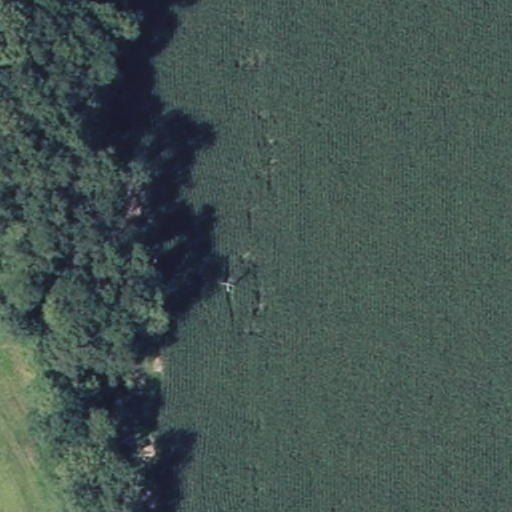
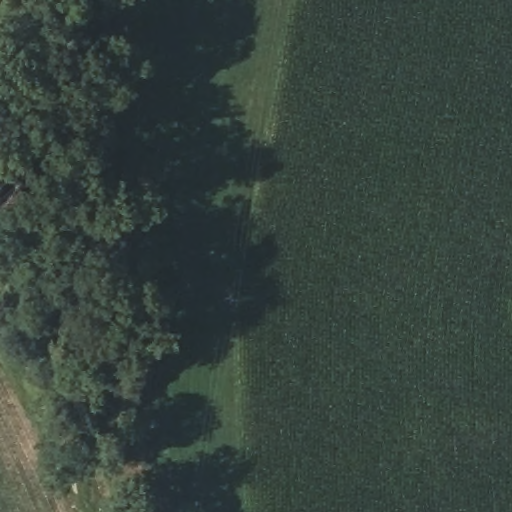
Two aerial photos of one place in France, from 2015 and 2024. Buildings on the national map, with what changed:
[]

